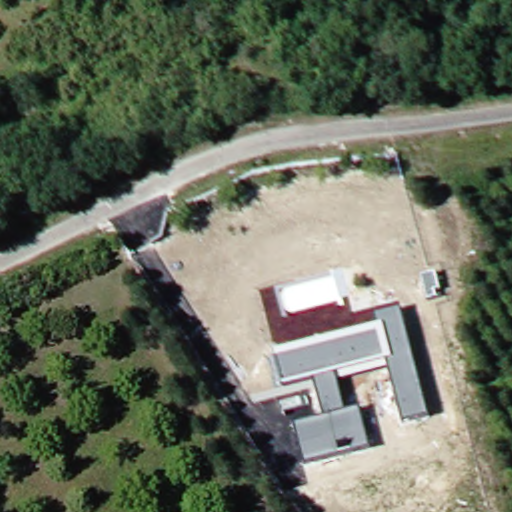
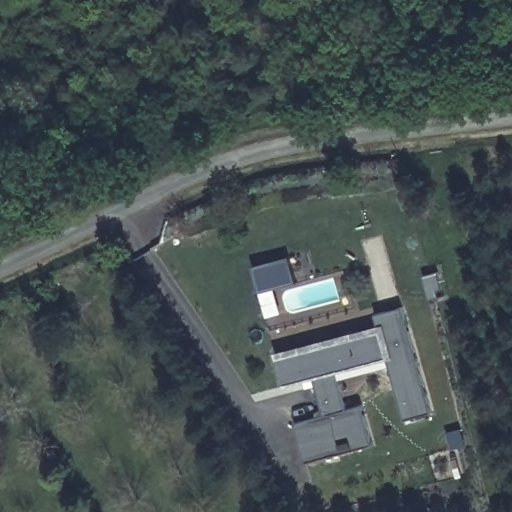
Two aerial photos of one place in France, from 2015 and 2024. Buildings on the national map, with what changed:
new [(260,290),(254,265),(289,256),(295,281),(260,290)]
unchanged [(401,309),(427,415),(401,421),(387,367),(337,380),(344,411),(359,407),(368,448),(304,463),(294,423),(323,416),(313,377),(283,386),(274,351),(378,325),(375,315),(401,309)]

